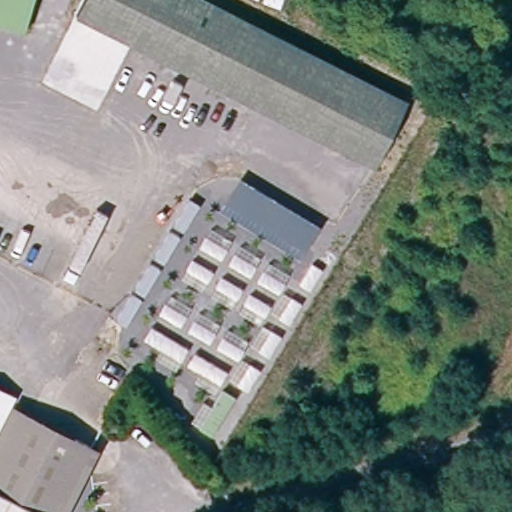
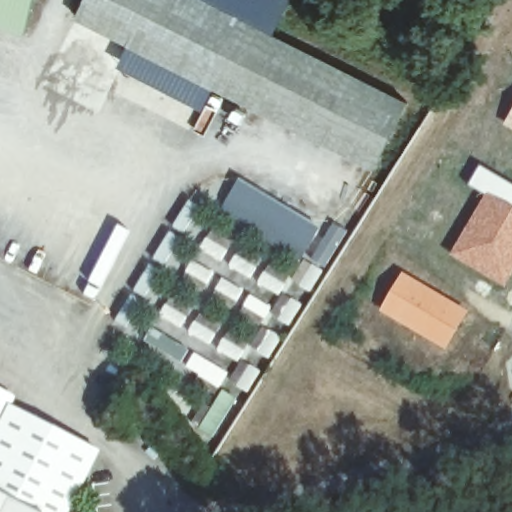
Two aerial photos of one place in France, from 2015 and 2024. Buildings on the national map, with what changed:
unchanged [(0,26),(0,0),(34,0),(25,33),(0,26)]
unchanged [(405,102),(373,165),(71,19),(80,0),(205,0),(272,35),(405,102)]
new [(289,0),(272,35),(205,0),(289,0)]
new [(505,125),(512,112),(512,129),(505,125)]
new [(505,289),(450,256),(486,195),(470,185),(480,166),(512,184),(512,278),(505,289)]
unchanged [(240,179),(320,227),(300,262),(222,213),(240,179)]
new [(447,351),(380,312),(403,273),(470,312),(447,351)]
unchanged [(10,408),(0,428),(0,390),(15,397),(10,408)]
unchanged [(15,411),(15,410),(97,448),(65,512),(46,512),(40,509),(38,512),(0,512),(0,428),(10,408),(15,411)]

